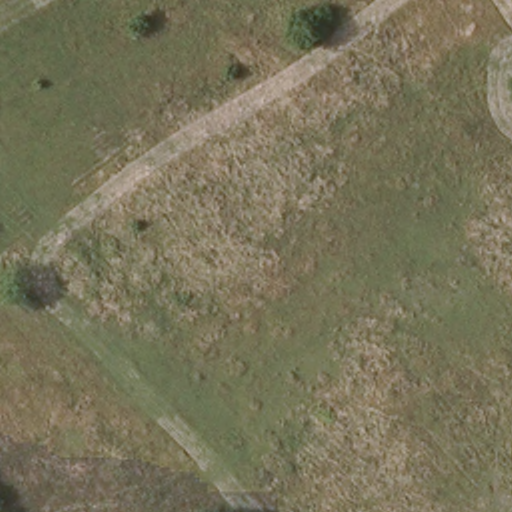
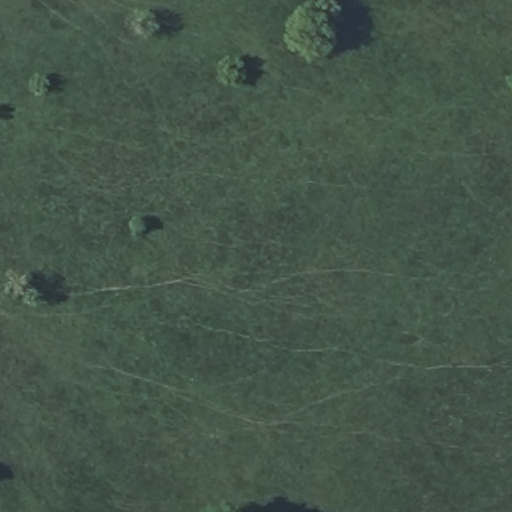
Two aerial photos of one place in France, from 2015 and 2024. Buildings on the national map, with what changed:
[]

